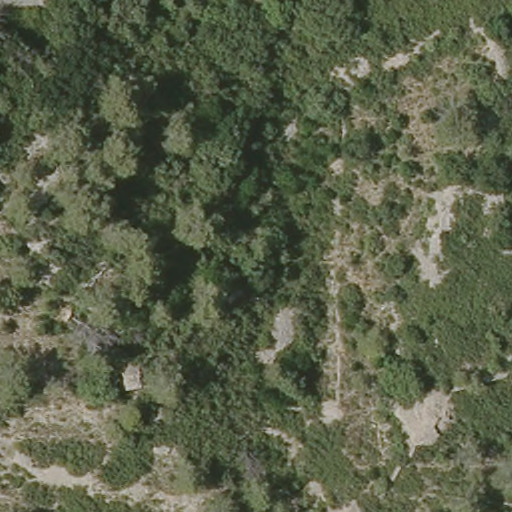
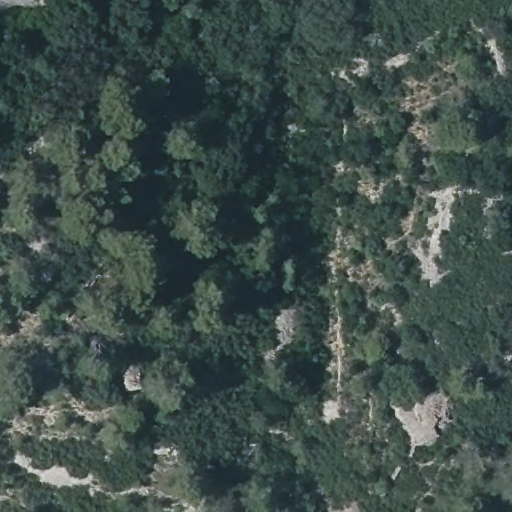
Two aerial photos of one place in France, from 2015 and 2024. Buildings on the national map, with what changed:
unchanged [(119,364),(136,361),(139,385),(123,388),(119,364)]

